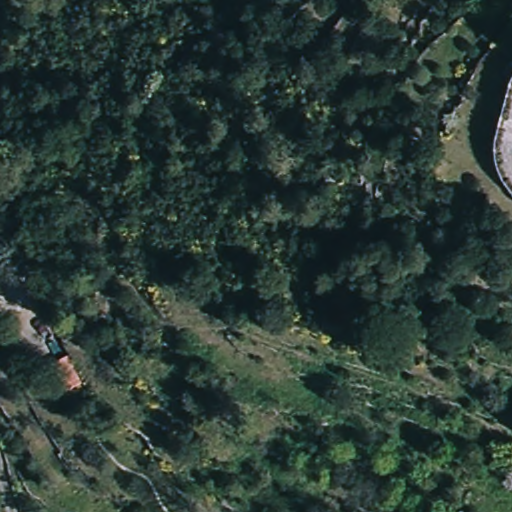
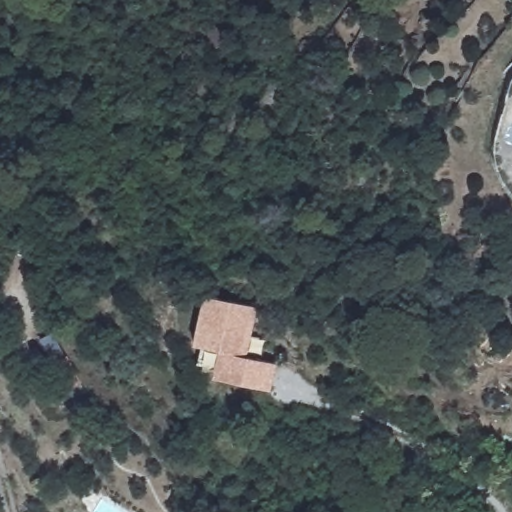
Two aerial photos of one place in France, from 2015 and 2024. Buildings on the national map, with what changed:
unchanged [(78,120),(64,115),(70,99),(85,104),(78,120)]
new [(250,356),(281,362),(276,389),(225,379),(226,369),(203,365),(206,348),(198,346),(206,304),(207,297),(233,302),(259,307),(250,356)]
unchanged [(75,370),(87,397),(70,404),(58,377),(75,370)]

